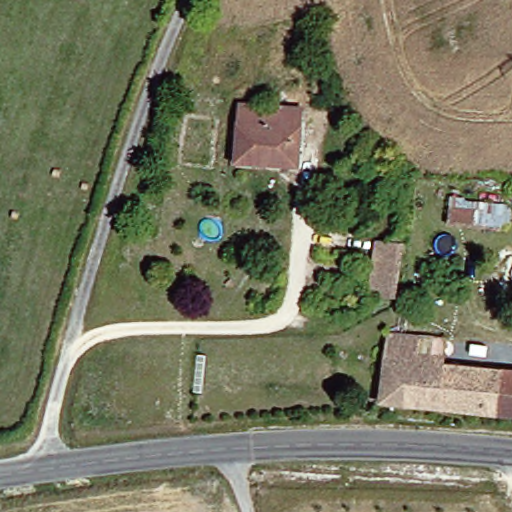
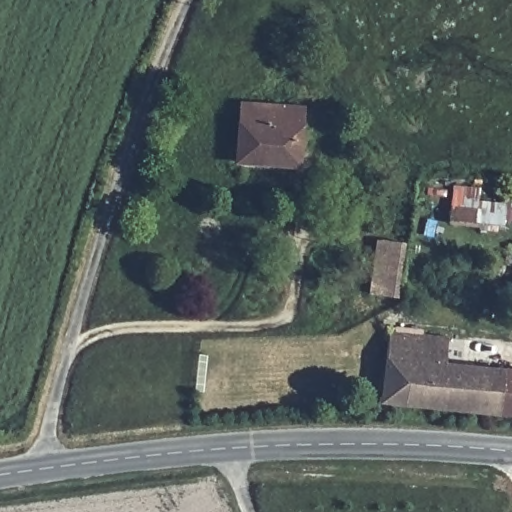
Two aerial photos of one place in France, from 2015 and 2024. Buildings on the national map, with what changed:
unchanged [(235,163),(235,106),(300,108),(300,156),(300,164),(267,165),(235,163)]
unchanged [(498,214),(457,211),(458,197),(499,200),(498,214)]
unchanged [(390,300),(360,295),(365,256),(370,257),(372,241),(396,244),(390,300)]
unchanged [(378,407),(386,337),(418,342),(431,342),(429,359),(442,362),(442,371),(512,376),(512,419),(378,407)]

